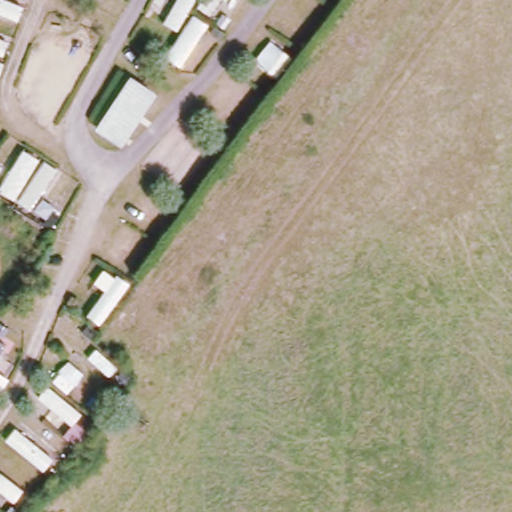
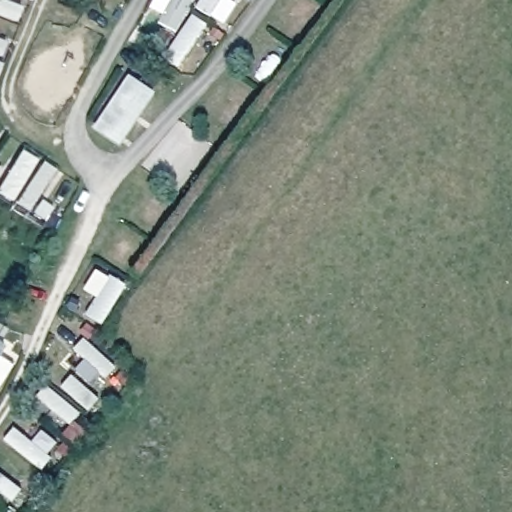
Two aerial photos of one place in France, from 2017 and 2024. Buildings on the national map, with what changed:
unchanged [(91,127),(124,75),(154,95),(119,144),(91,127)]

